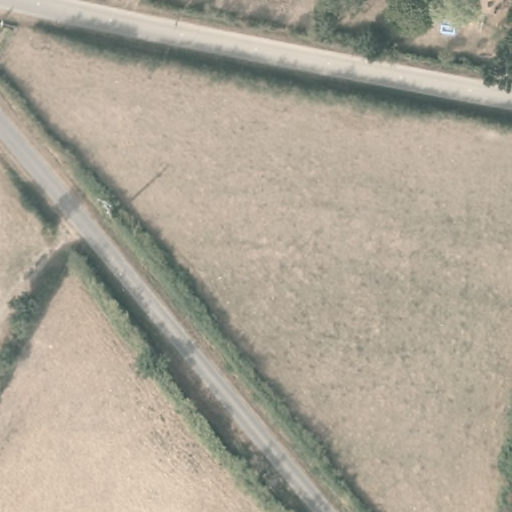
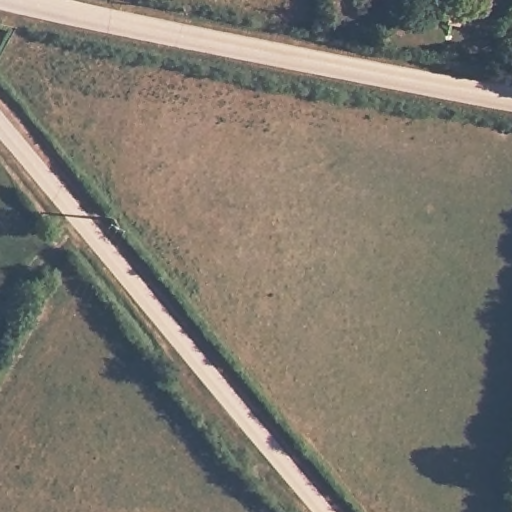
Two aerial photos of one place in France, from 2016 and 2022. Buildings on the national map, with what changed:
[]

